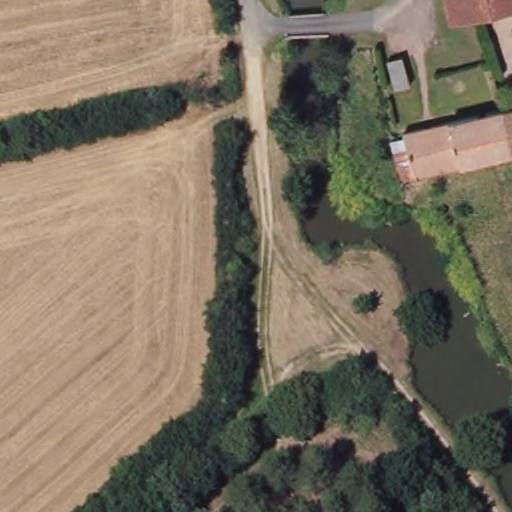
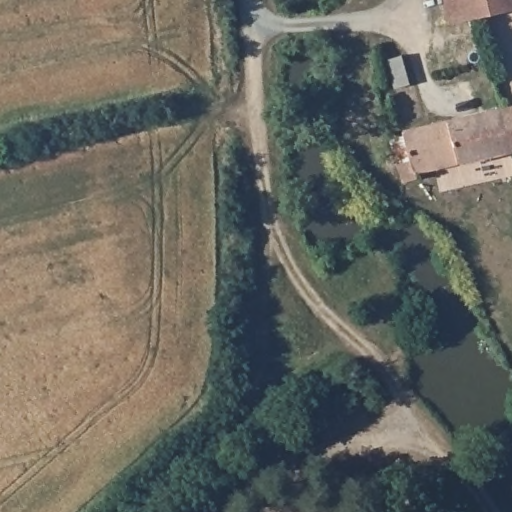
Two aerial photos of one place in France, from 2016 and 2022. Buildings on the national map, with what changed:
unchanged [(469,13),(468,15),(467,16),(467,18),(450,21),(446,0),(469,0),(471,12),(469,13)]
unchanged [(477,16),(477,14),(476,14),(475,12),(473,12),(471,12),(469,0),(512,0),(512,9),(477,16)]
unchanged [(410,84),(395,89),(387,59),(401,55),(410,84)]
unchanged [(505,114),(506,112),(506,110),(506,109),(512,107),(512,149),(503,114),(505,114)]
unchanged [(512,149),(415,171),(418,179),(402,182),(393,150),(406,147),(402,132),(491,112),(496,111),(497,112),(498,113),(500,114),(501,114),(503,114),(512,149)]

